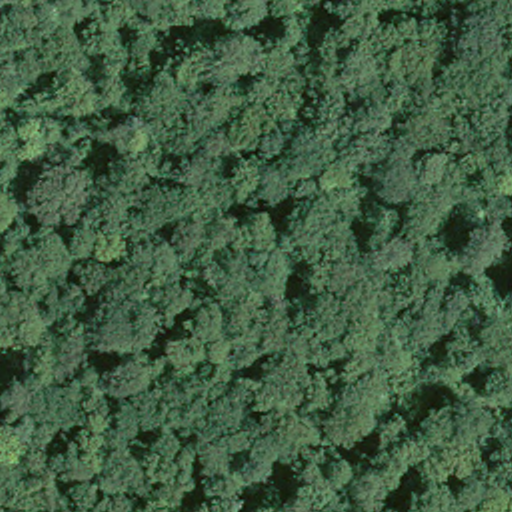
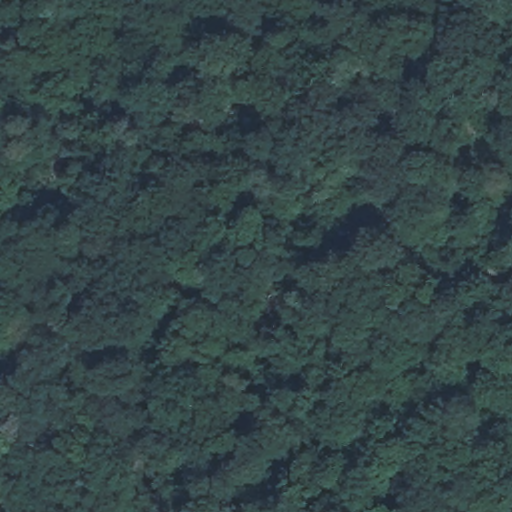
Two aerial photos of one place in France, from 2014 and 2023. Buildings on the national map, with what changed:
[]

